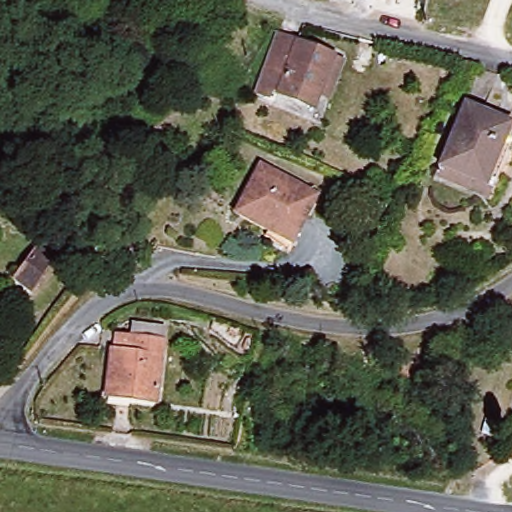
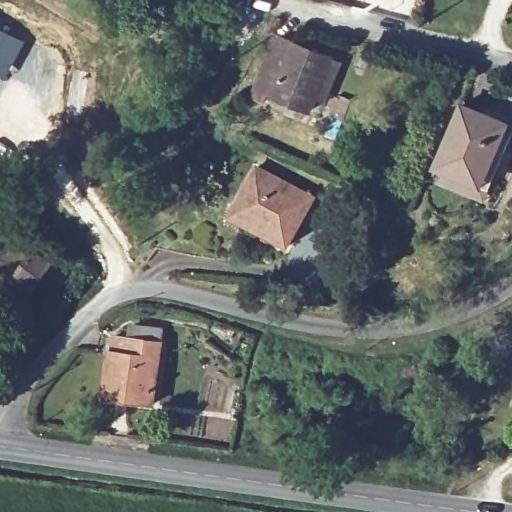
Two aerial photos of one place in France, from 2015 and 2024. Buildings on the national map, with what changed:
new [(5,80),(0,77),(0,30),(25,42),(5,80)]
unchanged [(327,101),(316,97),(282,86),(277,100),(258,92),(276,39),(300,46),(298,54),(327,62),(339,66),(327,101)]
unchanged [(433,182),(440,168),(466,109),(507,129),(480,188),(474,201),(433,182)]
unchanged [(241,205),(259,170),(316,200),(288,249),(277,243),(233,220),(241,205)]
unchanged [(44,275),(17,307),(3,295),(28,263),(44,275)]
unchanged [(170,338),(161,400),(109,395),(115,333),(170,338)]

